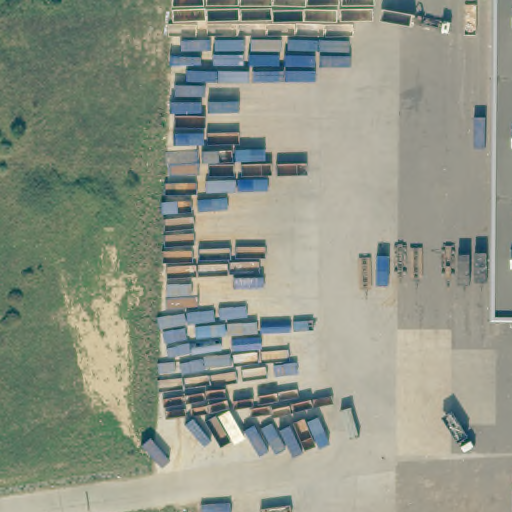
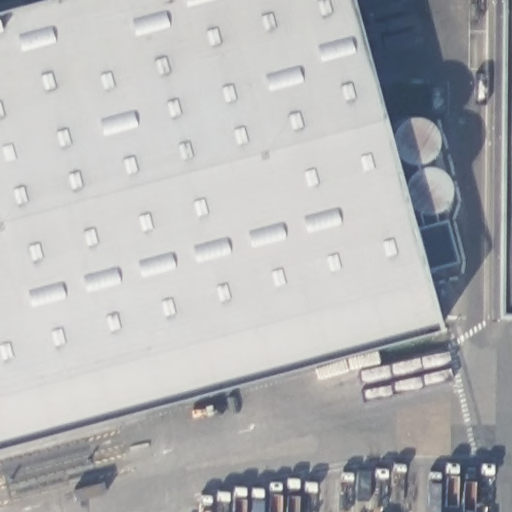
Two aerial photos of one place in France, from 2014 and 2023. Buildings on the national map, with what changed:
new [(434,331),(0,449),(0,13),(49,0),(344,0),(434,331)]
unchanged [(487,316),(491,0),(512,0),(512,316),(487,316)]

